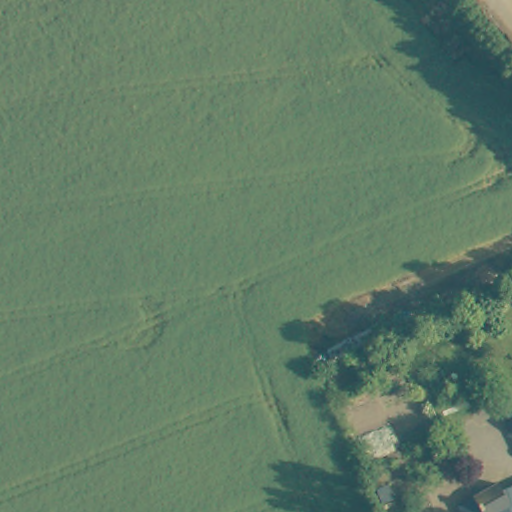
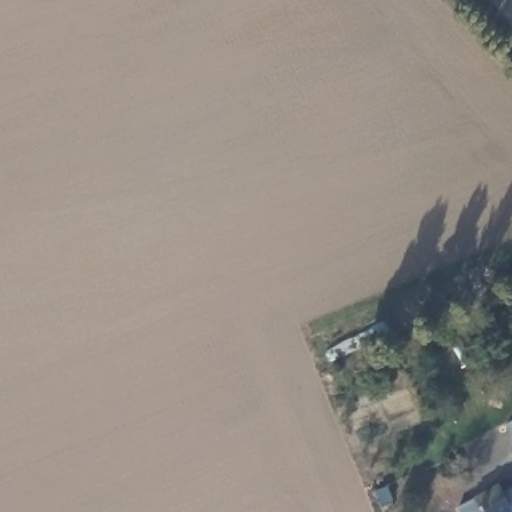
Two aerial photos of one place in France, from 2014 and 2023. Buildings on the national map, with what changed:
unchanged [(508,418),(512,416),(512,426),(508,418)]
unchanged [(500,483),(505,492),(512,507),(512,508),(505,512),(462,512),(459,504),(500,483)]
unchanged [(505,492),(512,488),(512,507),(505,492)]
unchanged [(512,508),(512,512),(505,512),(512,508)]

